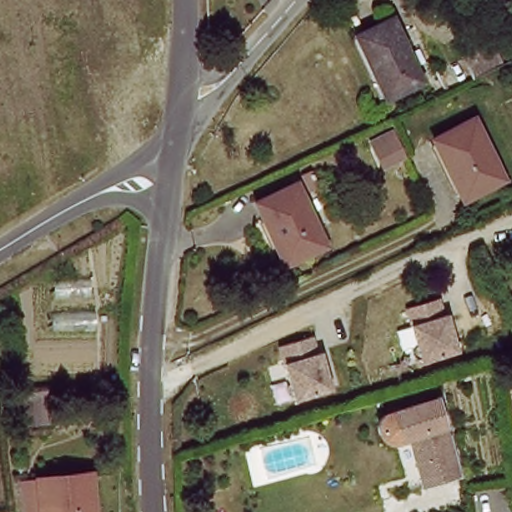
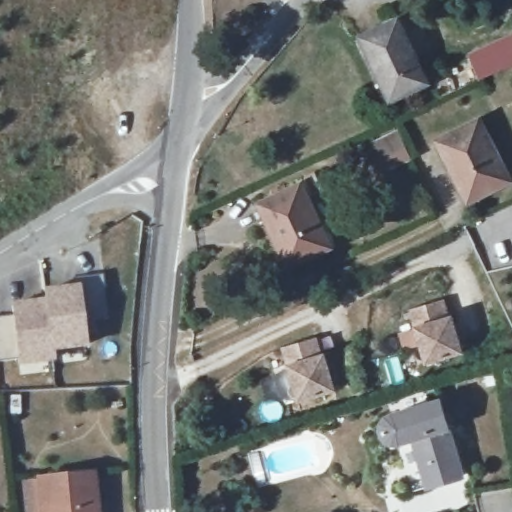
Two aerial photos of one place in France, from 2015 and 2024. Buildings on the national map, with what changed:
unchanged [(402,22),(423,87),(385,98),(366,34),(402,22)]
new [(479,80),(468,55),(512,33),(512,67),(479,80)]
unchanged [(481,114),(512,175),(512,185),(467,209),(434,140),(481,114)]
unchanged [(421,166),(402,175),(389,148),(409,139),(421,166)]
unchanged [(301,191),(329,255),(299,267),(285,235),(276,240),(262,207),(301,191)]
new [(88,346),(54,350),(49,302),(48,292),(80,288),(79,278),(106,275),(111,319),(85,322),(88,346)]
unchanged [(458,351),(421,362),(405,308),(439,298),(444,315),(447,314),(458,351)]
new [(55,360),(22,364),(21,359),(0,362),(0,318),(16,316),(15,306),(49,302),(54,350),(55,360)]
unchanged [(278,345),(311,335),(316,353),(319,352),(330,389),(294,399),(278,345)]
unchanged [(473,479),(437,489),(419,439),(397,444),(393,441),(388,437),(384,428),(384,422),(388,416),(396,413),(444,400),(473,479)]
unchanged [(89,475),(93,512),(41,512),(36,480),(89,475)]

